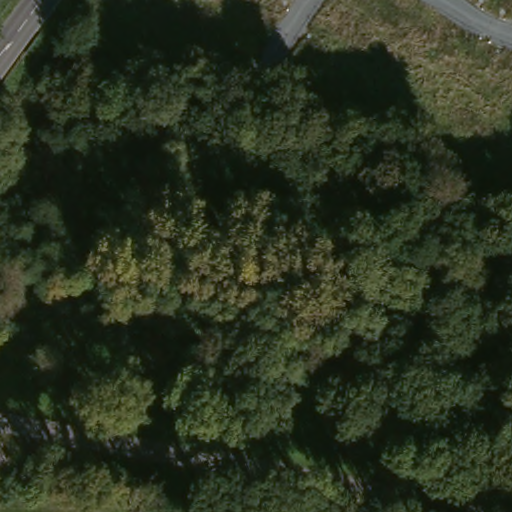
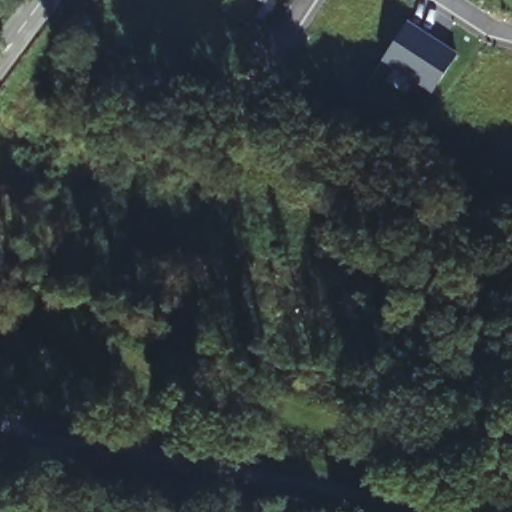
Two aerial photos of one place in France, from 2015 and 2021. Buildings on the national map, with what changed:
new [(259,0),(266,0),(264,4),(259,0)]
new [(409,22),(459,54),(435,91),(385,59),(409,22)]

